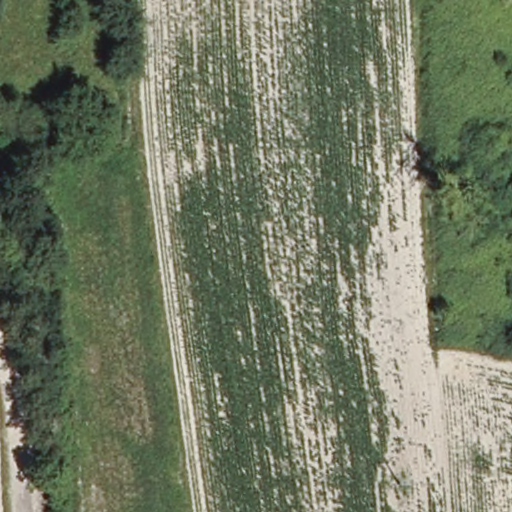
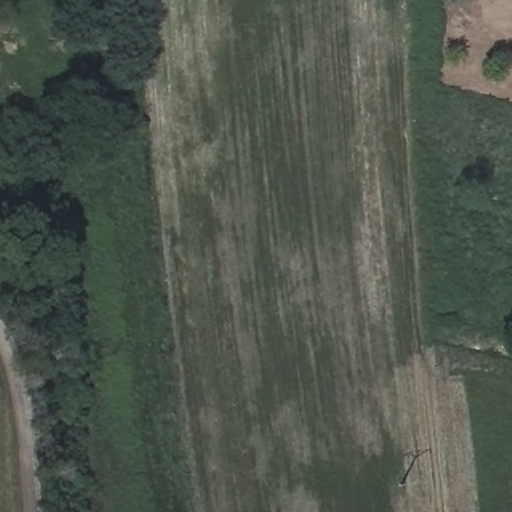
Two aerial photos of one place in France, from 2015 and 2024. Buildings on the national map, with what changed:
[]

